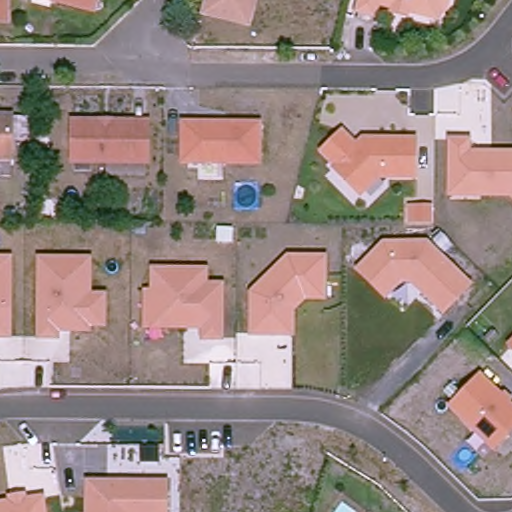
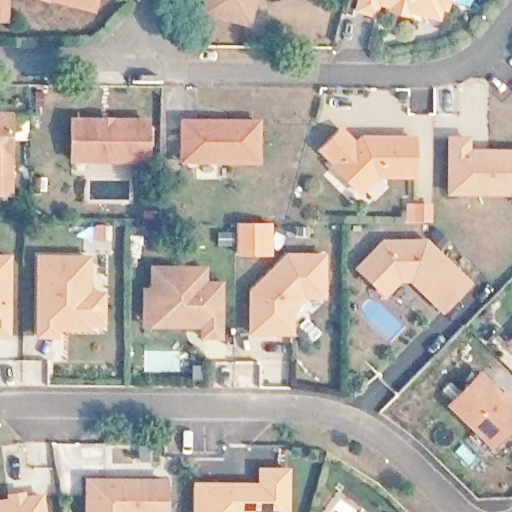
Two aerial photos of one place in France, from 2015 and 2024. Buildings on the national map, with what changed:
unchanged [(3,0),(3,19),(0,19),(0,0),(3,0)]
unchanged [(46,2),(39,0),(91,0),(88,13),(46,2)]
unchanged [(247,0),(240,26),(197,16),(201,0),(247,0)]
unchanged [(354,5),(356,0),(374,0),(371,9),(354,5)]
unchanged [(391,1),(389,0),(441,0),(438,1),(435,11),(403,4),(402,9),(390,6),(391,1)]
unchanged [(7,119),(6,161),(0,160),(0,118),(7,119)]
unchanged [(255,121),(255,160),(179,160),(180,121),(255,121)]
unchanged [(325,147),(345,128),(359,143),(362,141),(374,141),(374,138),(418,139),(417,175),(380,175),(362,192),(337,165),(339,162),(325,147)]
unchanged [(145,130),(144,170),(68,169),(69,130),(145,130)]
unchanged [(512,197),(511,197),(449,196),(449,136),(472,136),(472,151),(512,150),(512,197)]
unchanged [(414,220),(414,205),(429,205),(429,220),(414,220)]
new [(216,231),(235,231),(236,222),(272,222),(271,257),(235,256),(235,246),(215,246),(216,231)]
unchanged [(428,239),(473,283),(444,314),(411,283),(401,284),(385,299),(356,268),(381,239),(428,239)]
unchanged [(326,300),(306,300),(296,310),(296,337),(249,335),(248,290),(286,253),(327,254),(326,300)]
unchanged [(9,254),(8,333),(0,333),(0,254),(9,254)]
unchanged [(56,336),(38,335),(39,256),(89,257),(88,293),(104,293),(104,323),(88,323),(88,328),(69,328),(56,328),(56,336)]
unchanged [(167,325),(141,323),(142,290),(151,290),(151,305),(151,267),(204,267),(204,282),(220,282),(220,337),(201,337),(201,325),(182,325),(167,325)]
unchanged [(512,345),(509,342),(512,339),(512,345)]
unchanged [(512,407),(512,425),(492,445),(449,403),(478,374),(498,394),(512,407)]
new [(257,482),(257,467),(291,467),(291,512),(192,512),(193,482),(257,482)]
unchanged [(88,480),(166,480),(166,512),(88,512),(88,480)]
unchanged [(46,512),(0,512),(0,500),(6,499),(6,496),(27,491),(27,496),(43,494),(46,512)]

